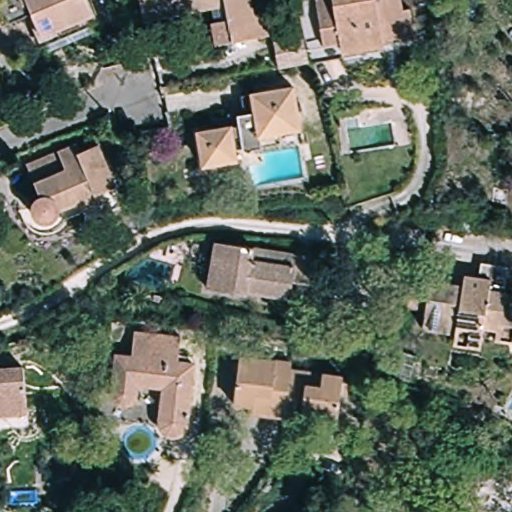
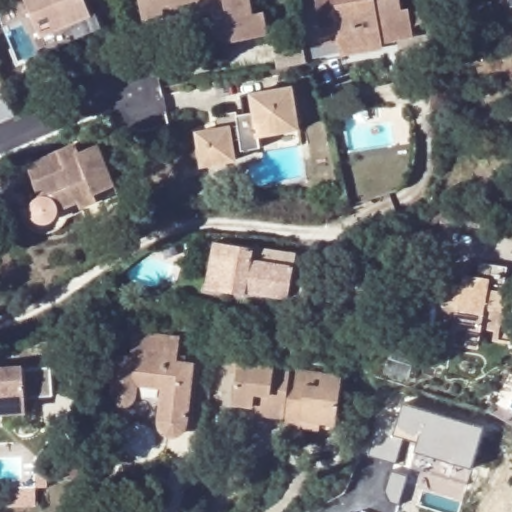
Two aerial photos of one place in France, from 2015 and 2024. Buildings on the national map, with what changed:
unchanged [(37,27),(26,4),(0,15),(0,0),(86,0),(88,5),(92,15),(41,36),(37,27)]
unchanged [(140,0),(251,0),(254,14),(265,12),(269,35),(216,45),(213,24),(228,21),(225,7),(145,22),(142,12),(140,0)]
unchanged [(306,37),(311,62),(282,67),(277,39),(305,34),(297,5),(326,0),(406,0),(408,12),(413,12),(417,32),(398,35),(400,42),(386,44),(388,59),(346,66),(345,60),(313,65),(313,63),(311,57),(306,37)]
unchanged [(262,142),(244,145),(241,134),(235,135),(239,156),(204,161),(198,127),(219,124),(217,114),(245,110),(243,91),(294,82),(299,116),(300,124),(281,127),(261,131),(262,142)]
new [(6,97),(15,116),(1,122),(0,119),(0,100),(6,97)]
unchanged [(80,197),(60,205),(58,211),(50,217),(43,217),(37,213),(33,207),(34,199),(41,191),(28,160),(76,140),(80,148),(98,141),(124,201),(105,209),(100,197),(83,204),(80,197)]
unchanged [(203,257),(206,238),(285,248),(285,251),(307,254),(301,296),(236,286),(235,290),(215,287),(215,284),(200,281),(203,257)]
unchanged [(490,336),(491,326),(480,323),(475,343),(448,339),(450,328),(418,323),(425,277),(458,282),(460,272),(475,273),(478,261),(502,264),(499,288),(512,290),(512,315),(508,338),(490,336)]
unchanged [(188,427),(183,434),(176,437),(169,436),(163,432),(160,422),(162,388),(138,386),(135,401),(126,406),(120,406),(114,402),(112,394),(116,356),(133,357),(135,333),(179,338),(178,363),(195,363),(188,427)]
unchanged [(250,396),(235,393),(240,347),(292,353),(291,361),(285,408),(268,406),(249,403),(250,396)]
unchanged [(300,417),(284,416),(285,408),(291,361),(343,367),(336,413),(321,412),(320,420),(300,417)]
unchanged [(21,406),(0,406),(0,364),(21,364),(21,406)]
new [(483,427),(471,468),(415,452),(418,442),(403,437),(395,462),(367,455),(380,408),(400,413),(402,405),(483,427)]
unchanged [(456,506),(475,512),(453,512),(456,506)]

